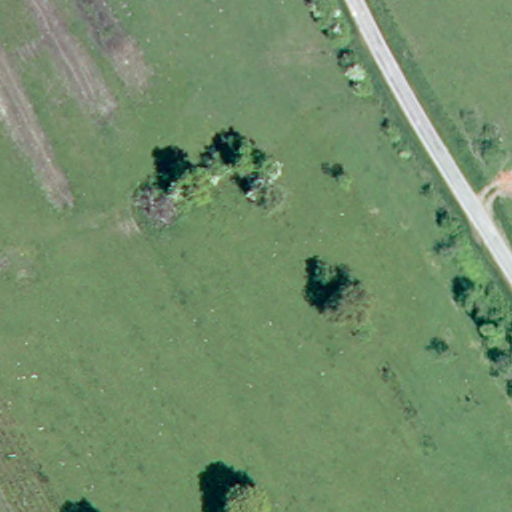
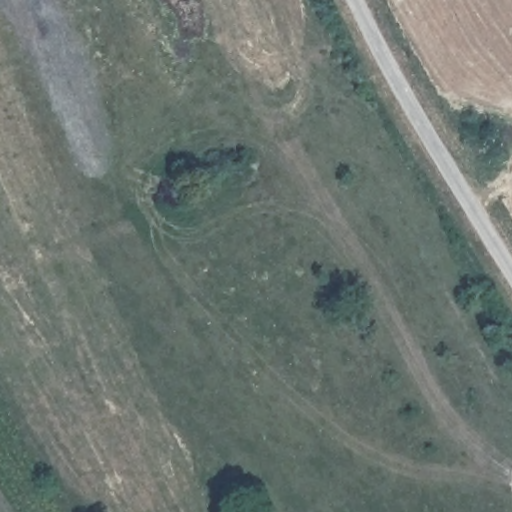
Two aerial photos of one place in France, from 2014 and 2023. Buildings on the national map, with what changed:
[]

